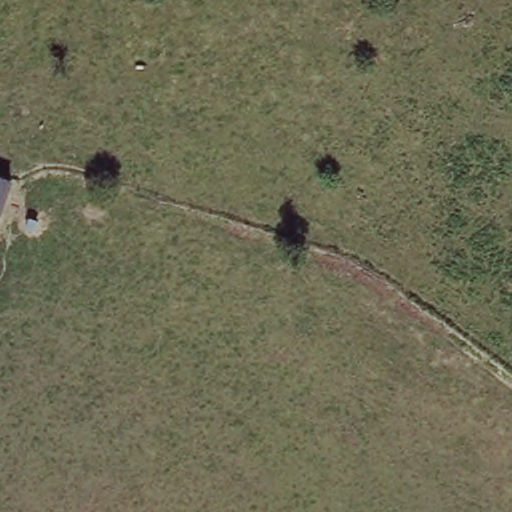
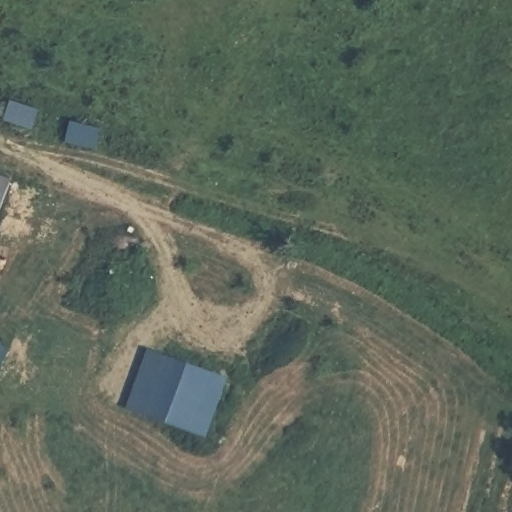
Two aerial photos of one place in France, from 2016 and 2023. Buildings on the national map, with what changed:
unchanged [(0,173),(8,176),(0,197),(0,173)]
new [(226,380),(203,441),(124,412),(147,351),(226,380)]

